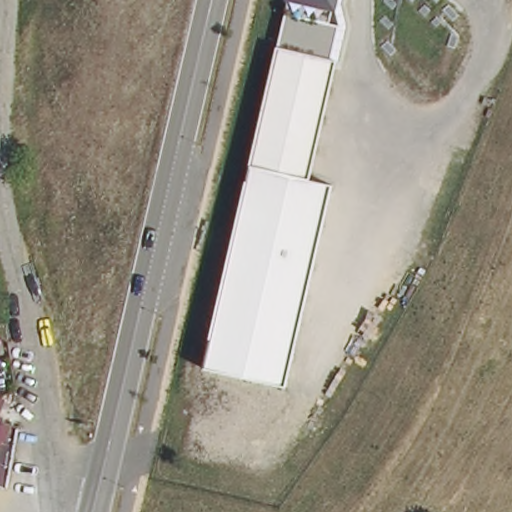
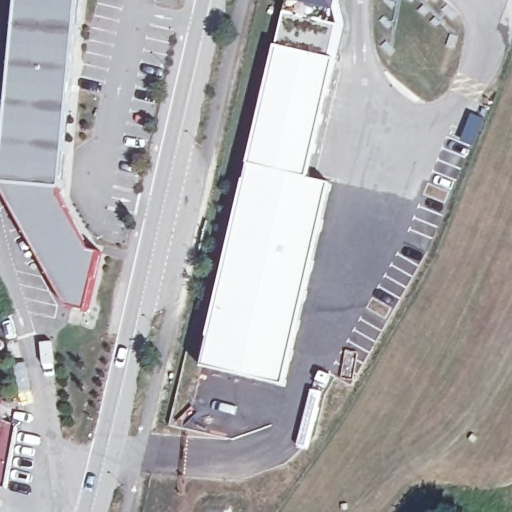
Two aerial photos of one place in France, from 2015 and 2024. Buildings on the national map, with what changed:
new [(59,198),(90,251),(101,253),(87,311),(68,307),(2,184),(18,0),(76,0),(61,188),(59,198)]
unchanged [(331,15),(334,0),(343,0),(342,6),(347,27),(338,58),(278,44),(288,5),(331,15)]
unchanged [(288,5),(289,0),(334,0),(331,15),(288,5)]
unchanged [(338,58),(310,177),(250,163),(278,44),(338,58)]
unchanged [(310,177),(332,182),(284,387),(203,370),(250,163),(310,177)]
unchanged [(0,485),(0,422),(19,428),(7,488),(0,485)]

